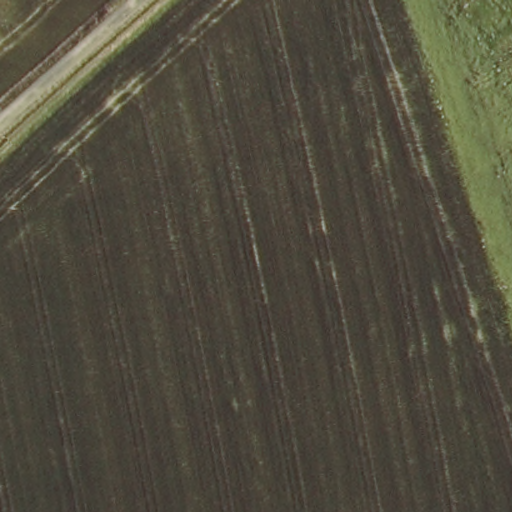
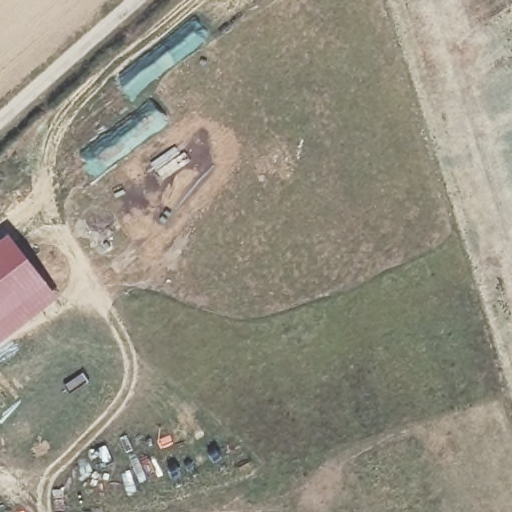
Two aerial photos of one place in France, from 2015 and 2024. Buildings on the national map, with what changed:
new [(59,296),(0,343),(0,236),(7,231),(59,296)]

